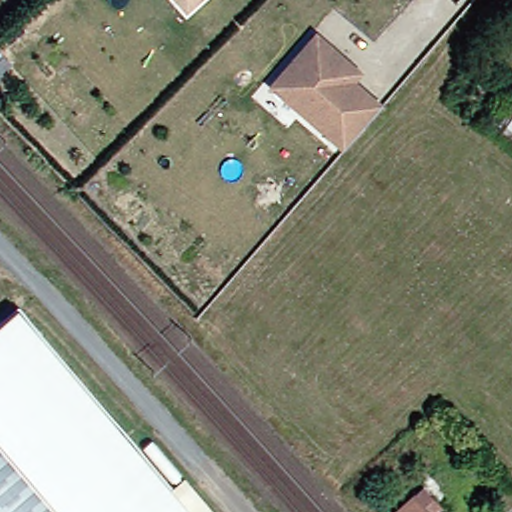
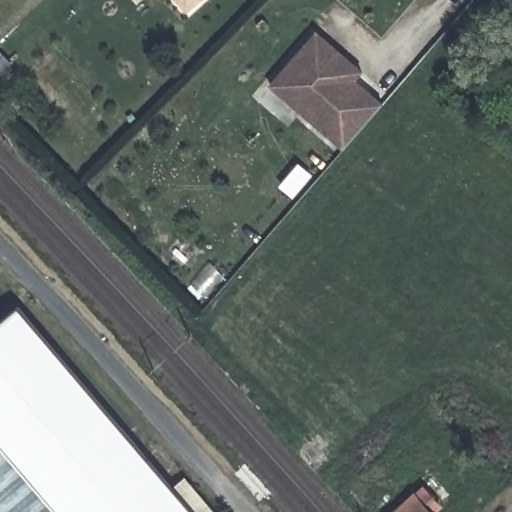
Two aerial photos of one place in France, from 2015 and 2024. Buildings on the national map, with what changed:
unchanged [(195,0),(183,11),(173,0),(195,0)]
unchanged [(271,86),(310,41),(317,33),(362,72),(355,80),(371,94),(383,105),(382,106),(344,150),(332,139),(271,86)]
unchanged [(8,305),(184,512),(52,512),(0,451),(0,312),(7,306),(8,305)]
unchanged [(0,453),(49,512),(0,512),(0,453)]
unchanged [(426,479),(439,494),(426,504),(429,507),(423,512),(389,512),(426,479)]

